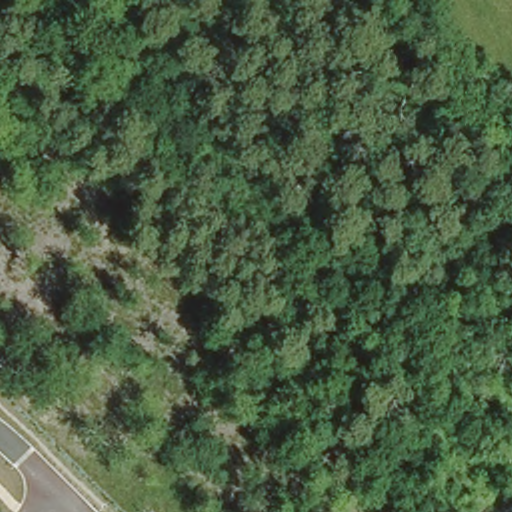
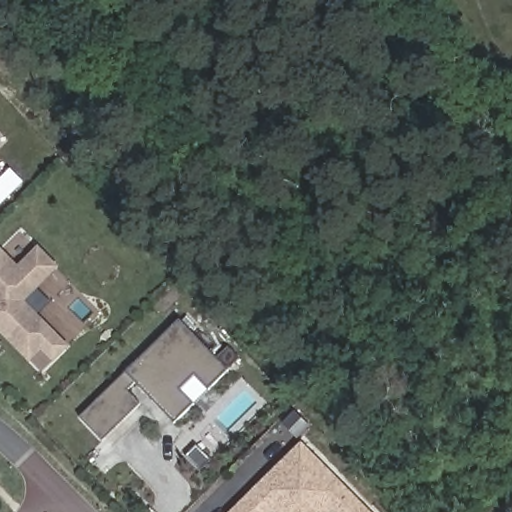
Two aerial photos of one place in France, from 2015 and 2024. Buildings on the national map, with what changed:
new [(37,245),(59,268),(24,301),(68,347),(52,361),(39,350),(27,362),(0,334),(0,248),(1,247),(17,265),(37,245)]
new [(125,390),(138,405),(101,441),(78,418),(178,320),(226,370),(208,389),(195,375),(178,389),(192,404),(173,422),(135,381),(125,390)]
new [(300,442),(370,512),(331,512),(330,511),(329,512),(229,512),(300,442)]

